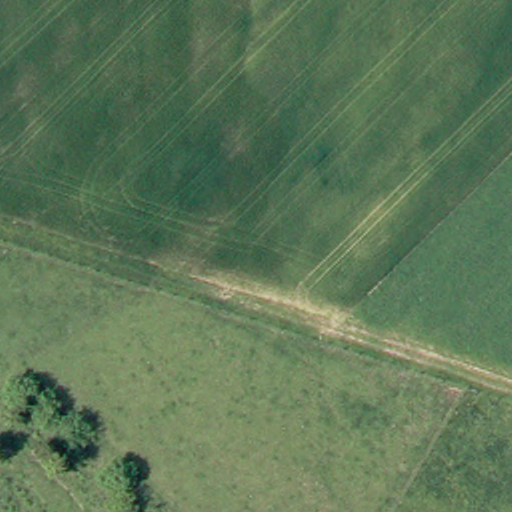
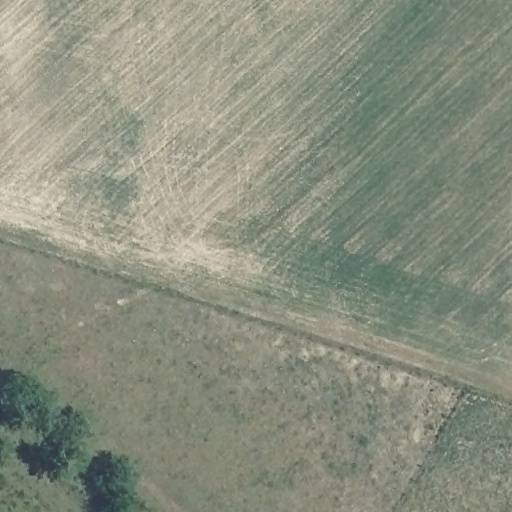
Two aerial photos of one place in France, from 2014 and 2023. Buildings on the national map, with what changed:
[]

